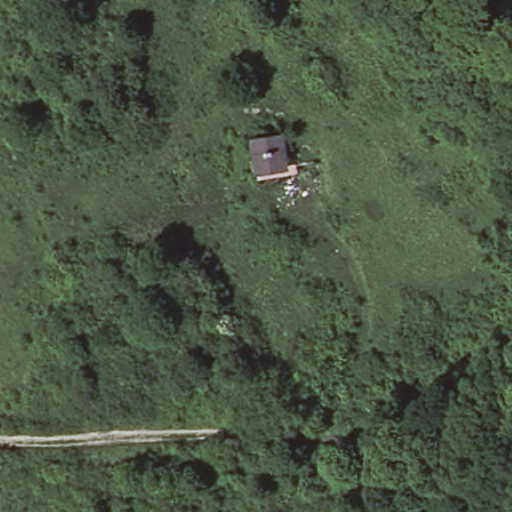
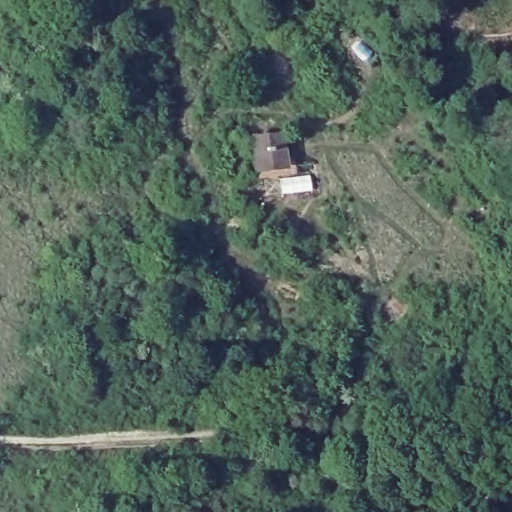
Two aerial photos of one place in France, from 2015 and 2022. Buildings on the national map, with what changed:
unchanged [(284,135),(288,166),(259,170),(254,140),(284,135)]

